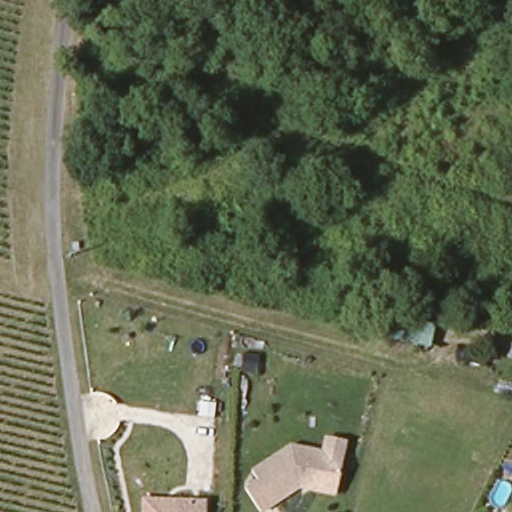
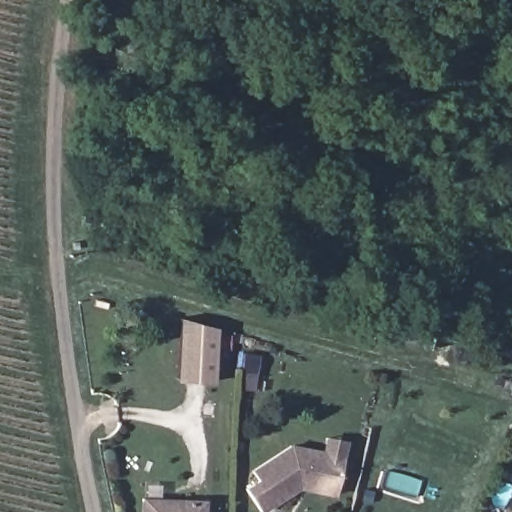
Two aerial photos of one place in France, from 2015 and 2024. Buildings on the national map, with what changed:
new [(215,382),(175,381),(179,318),(216,329),(215,382)]
unchanged [(289,443),(342,454),(335,492),(312,490),(305,481),(259,510),(244,486),(257,479),(251,468),(289,443)]
unchanged [(207,512),(137,512),(137,496),(207,500),(207,512)]

